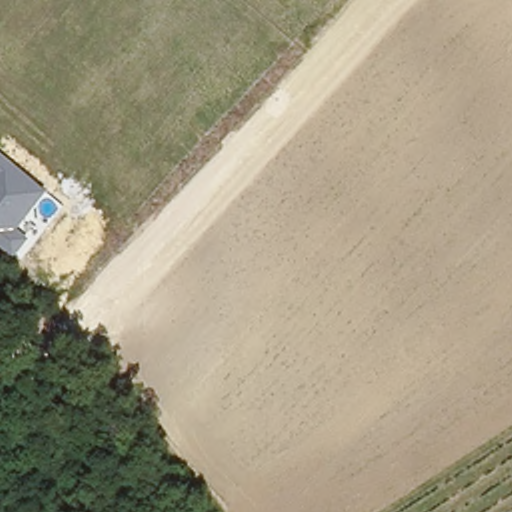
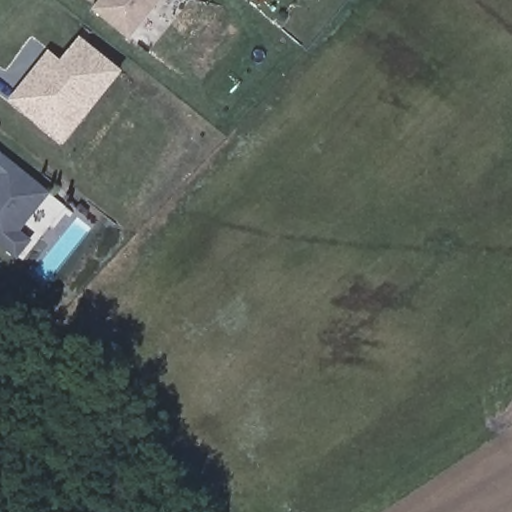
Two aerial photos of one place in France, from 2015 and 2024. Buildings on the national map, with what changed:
new [(125,32),(90,3),(92,0),(151,0),(125,32)]
new [(62,140),(12,97),(43,61),(54,71),(81,39),(120,70),(62,140)]
unchanged [(15,258),(0,246),(0,149),(51,192),(21,229),(32,237),(15,258)]

